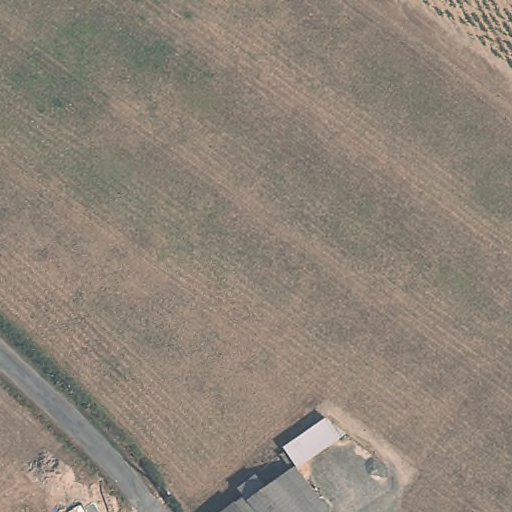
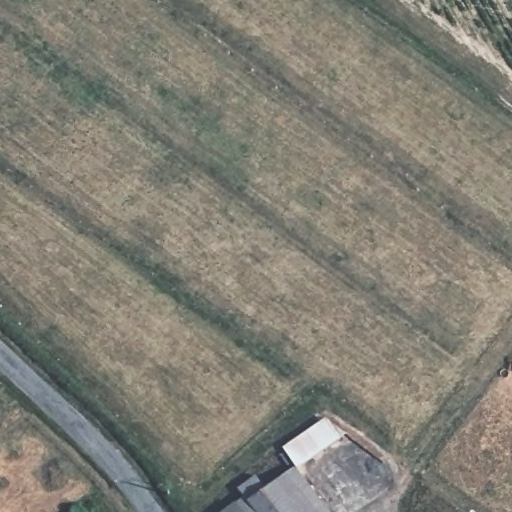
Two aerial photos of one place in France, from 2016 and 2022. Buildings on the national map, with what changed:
unchanged [(283,446),(327,416),(340,435),(297,466),(283,446)]
unchanged [(247,500),(240,490),(257,478),(266,487),(297,466),(329,512),(229,512),(247,500)]

